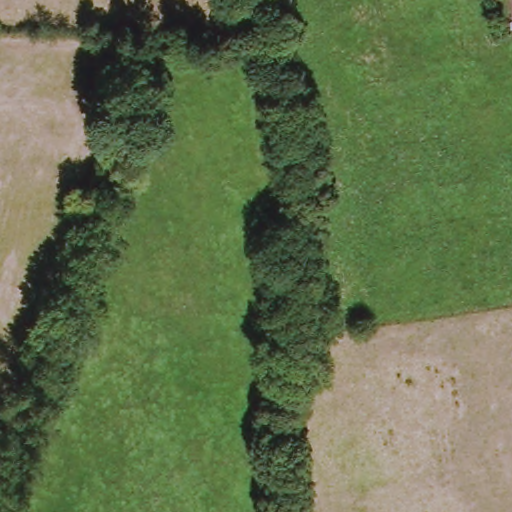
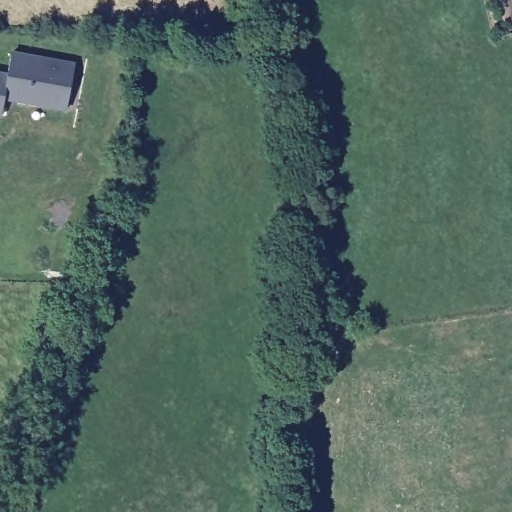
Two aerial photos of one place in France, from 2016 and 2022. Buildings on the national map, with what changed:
new [(13,52),(75,63),(66,111),(3,100),(0,116),(0,72),(8,74),(13,52)]

